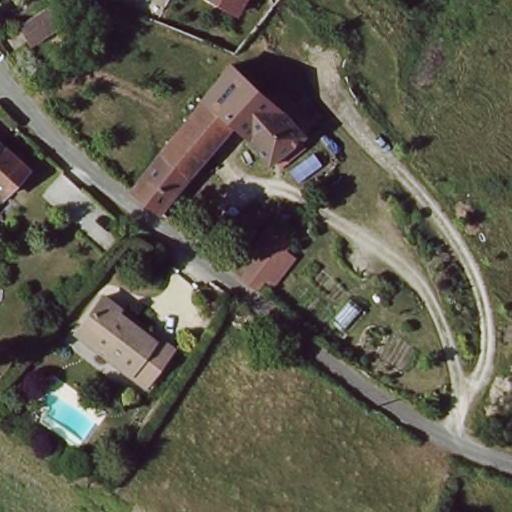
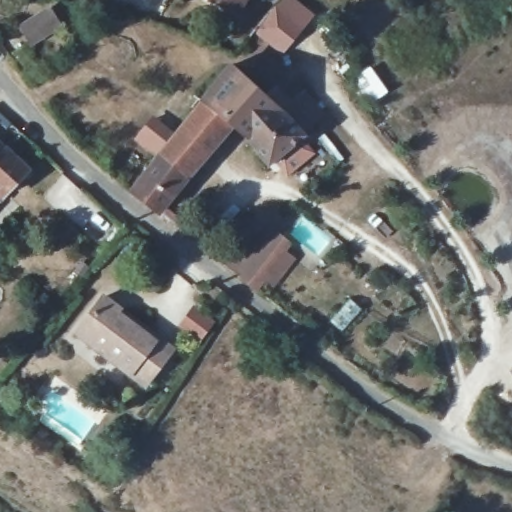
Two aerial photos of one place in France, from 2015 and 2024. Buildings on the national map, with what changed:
unchanged [(241,13),(216,0),(248,0),(241,13)]
new [(253,30),(278,0),(297,0),(315,15),(283,55),(253,30)]
unchanged [(0,69),(0,64),(9,55),(30,75),(18,93),(0,69)]
unchanged [(268,162),(231,127),(160,217),(133,194),(228,66),(275,114),(285,107),(307,131),(268,162)]
unchanged [(0,192),(0,153),(18,170),(0,192)]
unchanged [(236,266),(241,259),(259,272),(289,233),(302,243),(267,291),(249,277),(236,266)]
unchanged [(120,309),(156,336),(173,349),(146,388),(89,346),(74,335),(79,328),(102,296),(120,309)]

